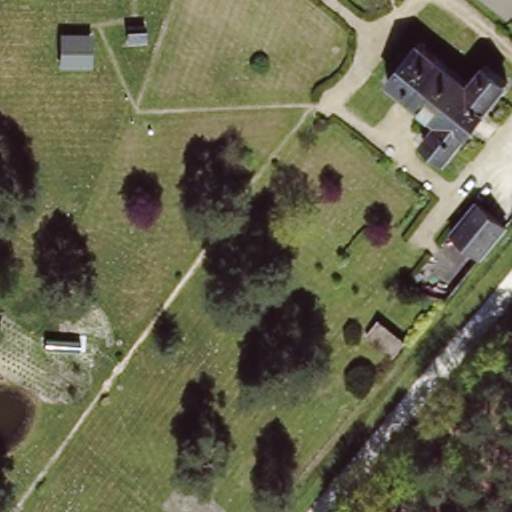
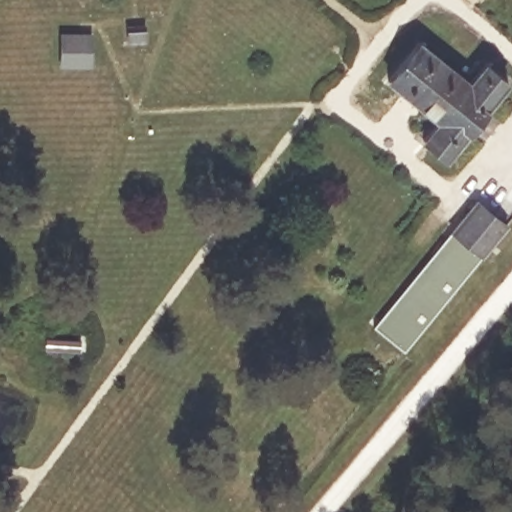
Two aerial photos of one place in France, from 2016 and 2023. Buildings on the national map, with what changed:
unchanged [(139,23),(143,43),(125,47),(121,27),(139,23)]
unchanged [(53,37),(86,35),(88,69),(54,70),(53,37)]
unchanged [(512,78),(512,84),(459,148),(432,126),(444,111),(392,68),(419,35),(472,77),(488,58),(512,78)]
unchanged [(479,251),(453,230),(481,197),(506,218),(479,251)]
new [(453,230),(479,251),(504,220),(510,225),(404,354),(374,328),(453,230)]
new [(48,340),(79,341),(78,351),(47,350),(48,340)]

